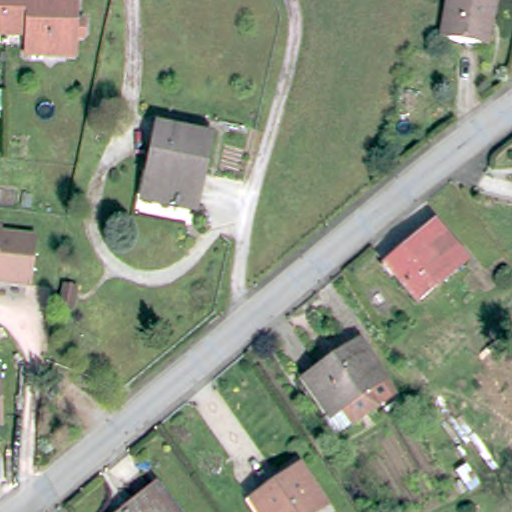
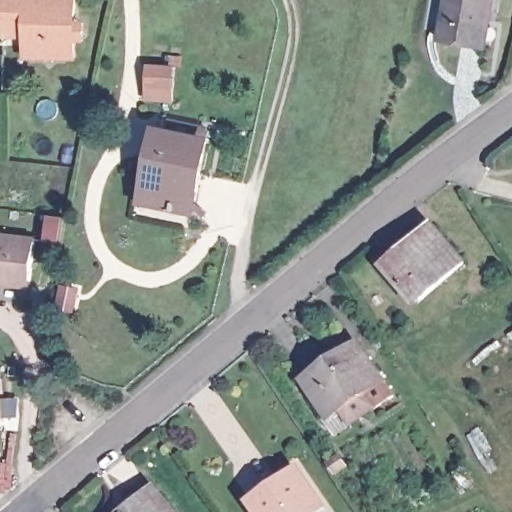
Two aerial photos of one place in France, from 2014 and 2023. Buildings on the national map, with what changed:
unchanged [(74,0),(73,25),(82,25),(82,42),(72,42),(72,60),(24,59),(25,22),(5,22),(0,22),(0,0),(74,0)]
unchanged [(437,35),(443,0),(489,0),(486,17),(482,43),(475,42),(437,35)]
new [(144,100),(147,63),(176,66),(173,102),(144,100)]
unchanged [(165,117),(202,124),(200,136),(202,137),(187,204),(140,194),(154,127),(162,128),(165,117)]
unchanged [(463,258),(417,297),(387,262),(432,223),(463,258)]
unchanged [(2,232),(2,236),(37,241),(31,288),(2,285),(2,281),(0,280),(0,232),(2,232)]
unchanged [(70,295),(67,312),(58,311),(62,293),(70,295)]
unchanged [(354,332),(387,381),(327,421),(317,405),(322,401),(300,367),(354,332)]
unchanged [(29,367),(45,368),(42,390),(27,389),(29,367)]
unchanged [(347,466),(335,473),(329,463),(340,456),(347,466)]
unchanged [(324,502),(308,512),(262,512),(253,500),(300,467),(324,502)]
unchanged [(174,512),(121,512),(125,509),(126,510),(139,500),(137,498),(153,486),(174,512)]

